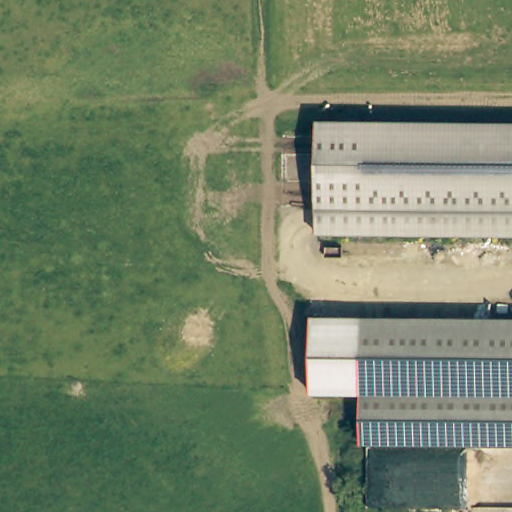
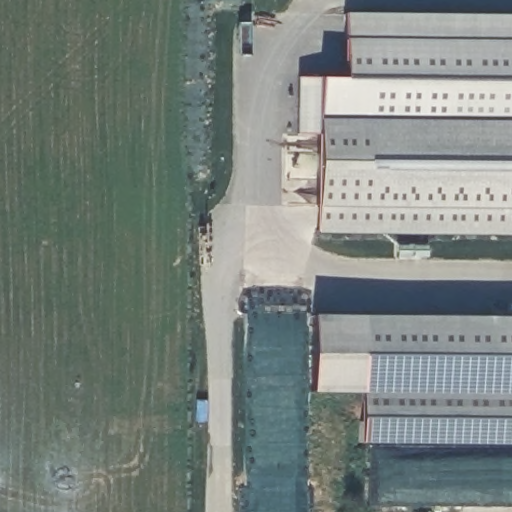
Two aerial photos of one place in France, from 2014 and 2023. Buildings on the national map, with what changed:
new [(320,120),(320,135),(296,134),(297,77),(318,76),(343,77),(343,12),(512,15),(512,121),(320,120)]
unchanged [(512,121),(512,235),(316,235),(320,120),(512,121)]
unchanged [(512,317),(512,444),(360,444),(362,395),(309,393),(313,315),(512,317)]

